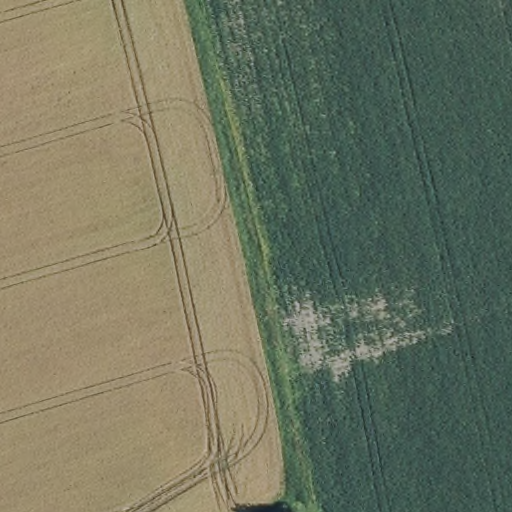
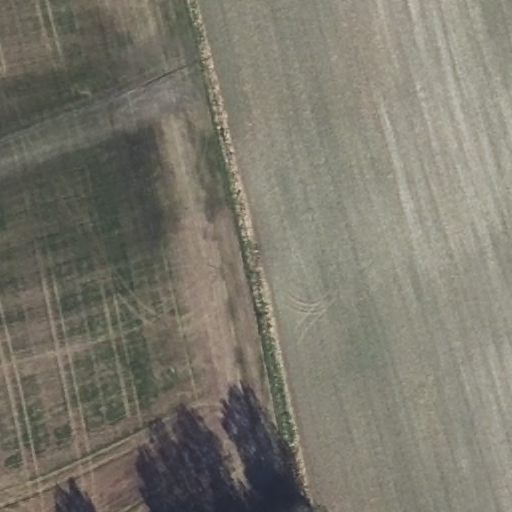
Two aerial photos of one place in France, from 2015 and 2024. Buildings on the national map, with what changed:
[]

